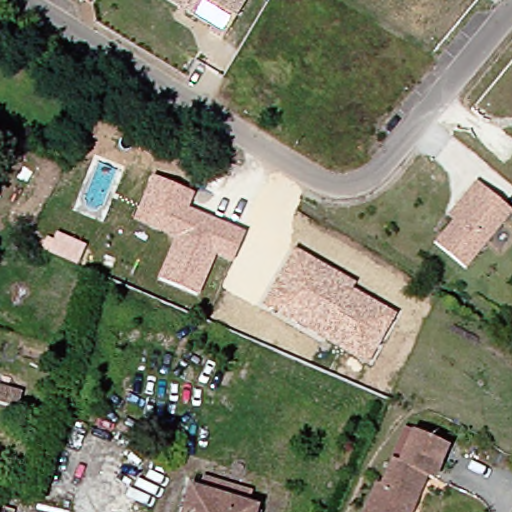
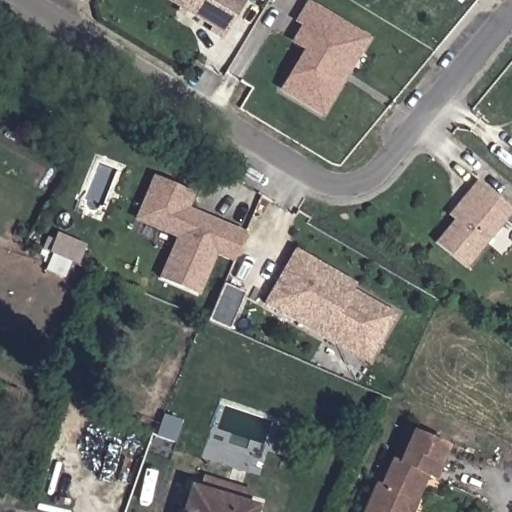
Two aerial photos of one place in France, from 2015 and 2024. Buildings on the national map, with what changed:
unchanged [(220,40),(206,32),(210,28),(164,0),(244,0),(245,0),(220,40)]
new [(323,115),(279,89),(302,50),(290,42),(300,25),(293,23),(308,0),(370,39),(323,115)]
unchanged [(134,219),(152,176),(195,194),(189,209),(244,232),(232,262),(215,255),(199,294),(158,277),(174,238),(134,219)]
unchanged [(512,209),(512,212),(467,268),(435,243),(459,214),(458,204),(476,180),(512,209)]
new [(46,237),(54,241),(57,233),(85,245),(77,265),(47,252),(42,249),(46,237)]
unchanged [(261,304),(294,248),(356,284),(352,289),(396,315),(367,364),(261,304)]
new [(226,284),(247,293),(245,297),(231,329),(210,319),(224,288),(226,284)]
new [(17,408),(0,402),(0,386),(21,392),(17,408)]
unchanged [(452,447),(438,479),(432,477),(420,504),(411,500),(407,509),(409,512),(369,512),(379,489),(383,491),(395,464),(403,467),(418,432),(452,447)]
unchanged [(260,512),(188,512),(202,483),(260,511),(260,512)]

